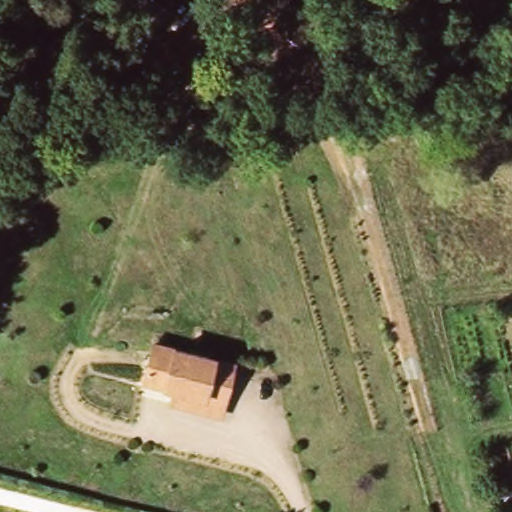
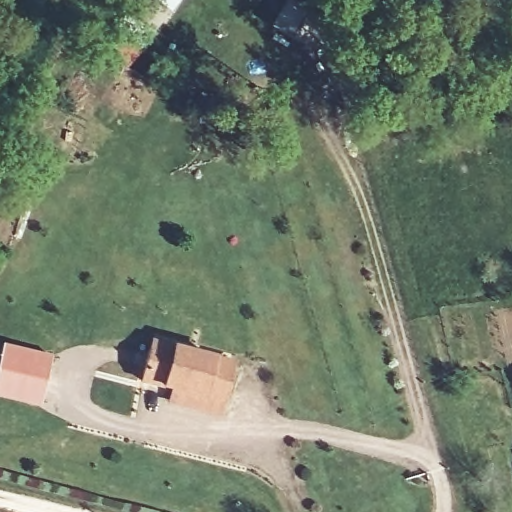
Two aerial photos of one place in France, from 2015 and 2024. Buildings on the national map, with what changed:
new [(40,407),(0,397),(0,359),(4,343),(52,355),(40,407)]
unchanged [(146,384),(156,346),(235,364),(227,402),(225,416),(171,404),(174,391),(146,384)]

